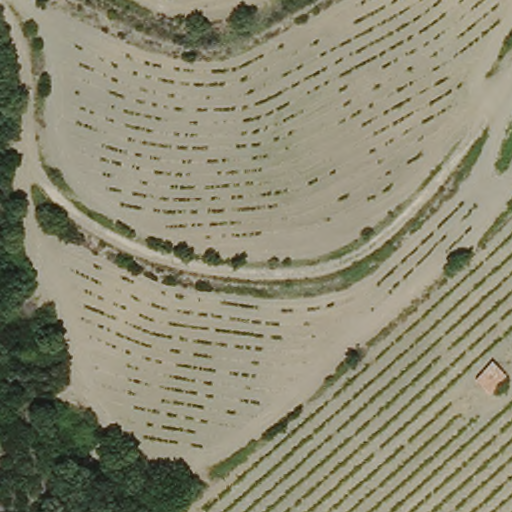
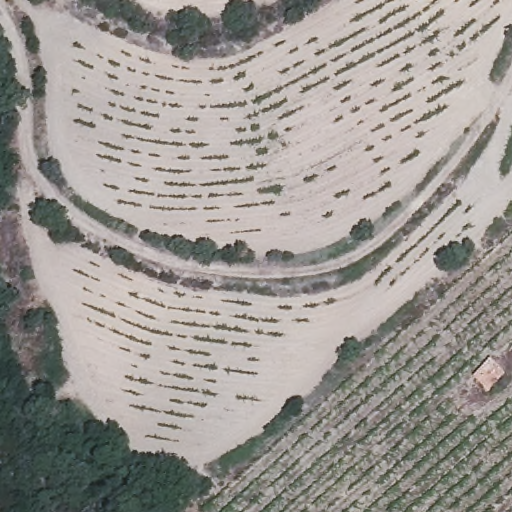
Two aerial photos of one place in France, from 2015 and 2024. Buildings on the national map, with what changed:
unchanged [(490,400),(474,384),(492,360),(507,377),(490,400)]

